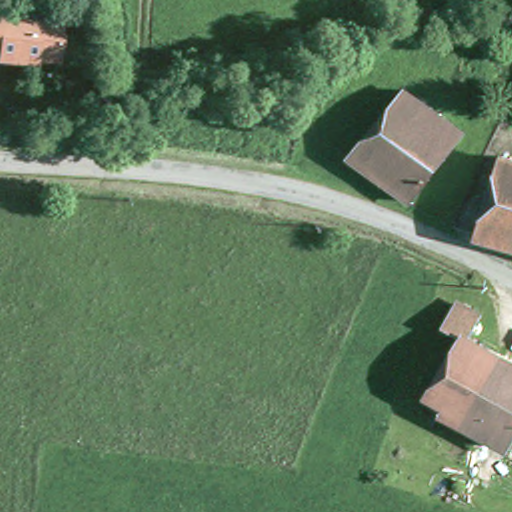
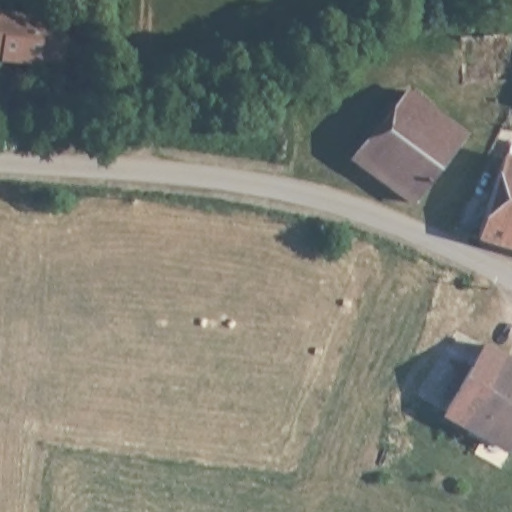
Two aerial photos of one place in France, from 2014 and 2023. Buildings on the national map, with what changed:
unchanged [(99,0),(116,0),(115,6),(98,5),(99,0)]
unchanged [(61,68),(33,65),(31,69),(5,66),(5,62),(0,61),(0,21),(66,29),(61,68)]
unchanged [(463,140),(411,208),(351,162),(408,93),(463,140)]
unchanged [(503,160),(512,163),(512,247),(482,237),(503,160)]
unchanged [(512,447),(509,451),(446,416),(450,408),(429,396),(462,337),(469,341),(512,366),(512,447)]

